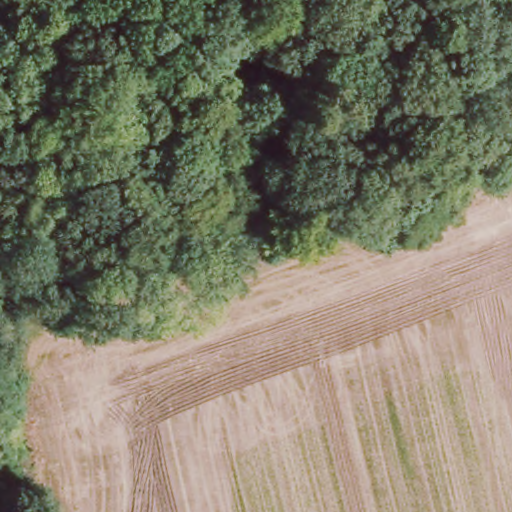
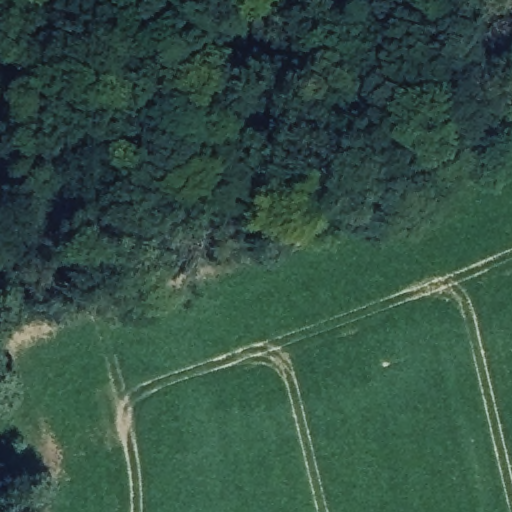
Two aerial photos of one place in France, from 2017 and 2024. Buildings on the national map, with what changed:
unchanged [(47,508),(45,512),(20,512),(30,498),(47,508)]

